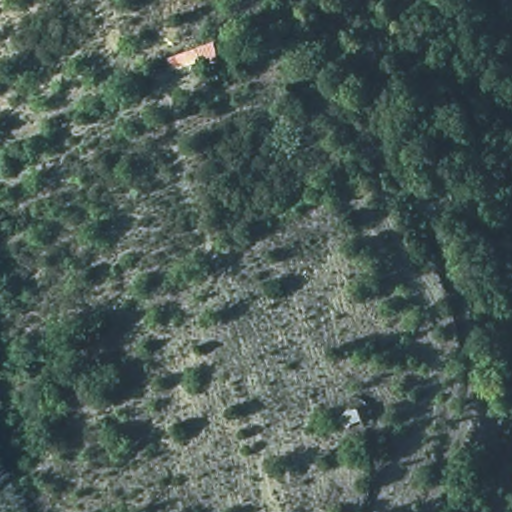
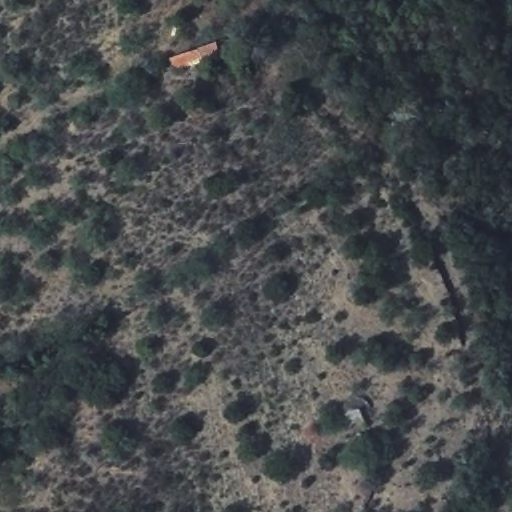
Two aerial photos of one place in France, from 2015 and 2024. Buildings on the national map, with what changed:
unchanged [(218,39),(227,54),(180,74),(169,51),(218,39)]

